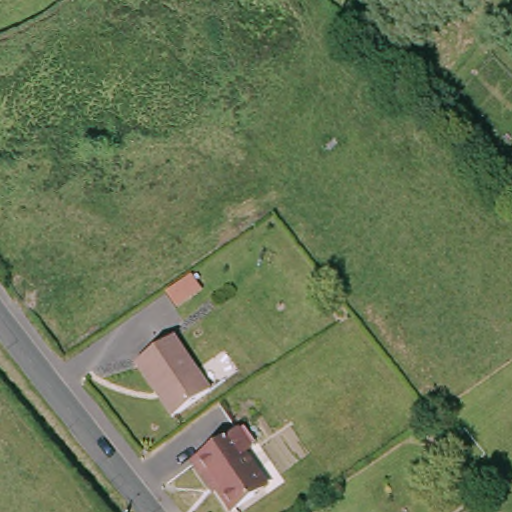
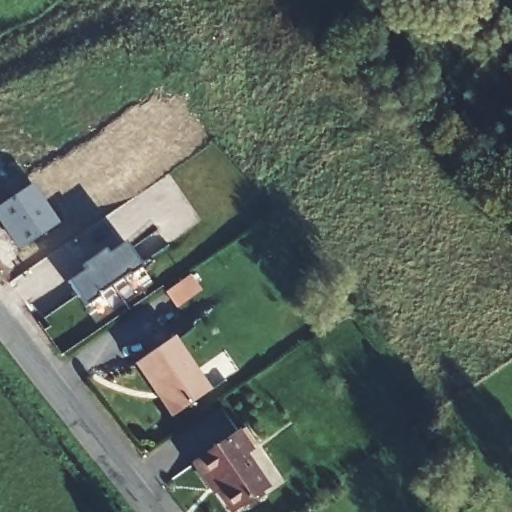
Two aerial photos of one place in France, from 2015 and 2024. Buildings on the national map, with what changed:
new [(0,206),(32,185),(60,224),(19,251),(0,224),(0,206)]
new [(128,277),(127,275),(97,295),(99,297),(85,307),(67,282),(84,270),(81,266),(104,250),(107,254),(125,242),(142,267),(128,277)]
unchanged [(174,335),(212,387),(177,414),(138,362),(174,335)]
unchanged [(232,511),(209,478),(202,482),(191,465),(240,432),(251,450),(245,453),(269,486),(232,511)]

